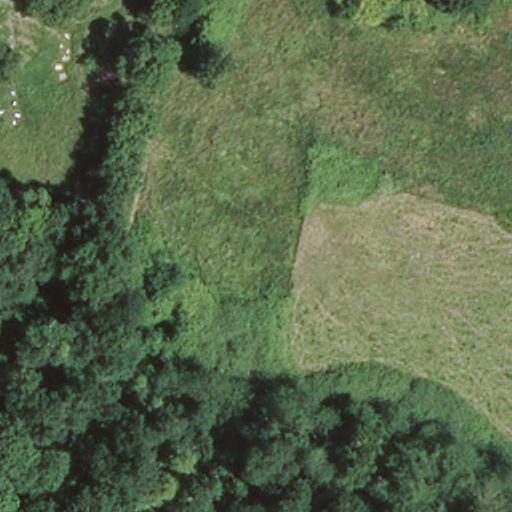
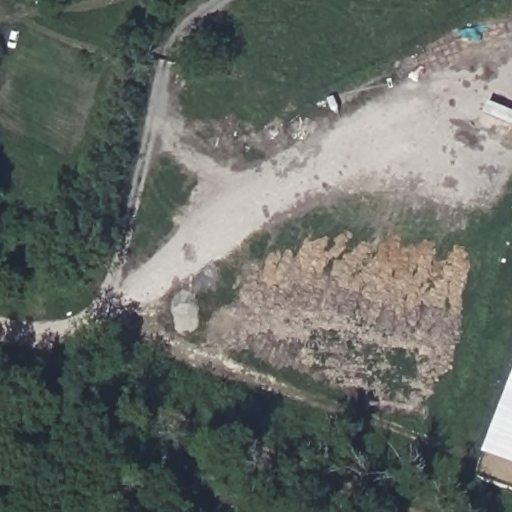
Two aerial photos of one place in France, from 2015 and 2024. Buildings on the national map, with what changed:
new [(512,463),(486,453),(512,385),(512,463)]

